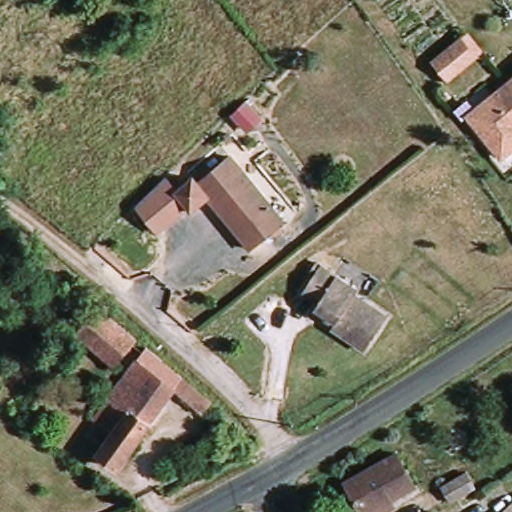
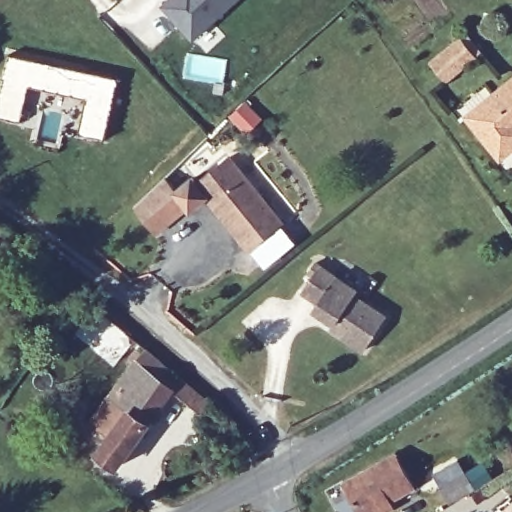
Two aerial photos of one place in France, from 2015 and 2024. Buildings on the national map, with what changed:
new [(163,7),(170,0),(238,0),(194,41),(163,7)]
unchanged [(436,59),(451,47),(464,37),(478,56),(464,67),(451,77),(436,59)]
new [(79,134),(87,96),(27,85),(21,120),(0,117),(0,95),(9,56),(117,79),(104,139),(79,134)]
unchanged [(512,78),(512,137),(485,99),(512,78)]
unchanged [(497,155),(467,113),(485,99),(512,137),(512,144),(497,155)]
unchanged [(191,208),(160,235),(135,206),(166,176),(177,190),(194,176),(197,181),(227,158),(230,163),(200,188),(207,197),(191,208)]
unchanged [(230,163),(280,224),(249,249),(207,197),(200,188),(230,163)]
unchanged [(318,311),(320,304),(305,295),(316,278),(310,275),(317,265),(322,268),(359,290),(356,297),(388,317),(368,350),(337,331),(337,328),(316,315),(318,311)]
unchanged [(119,364),(79,335),(100,309),(138,338),(119,364)]
unchanged [(105,445),(86,430),(136,363),(201,411),(194,422),(165,400),(109,479),(90,465),(105,445)]
unchanged [(384,504),(389,511),(387,512),(359,512),(344,487),(394,454),(412,485),(384,504)]
unchanged [(434,486),(459,470),(467,485),(443,500),(434,486)]
unchanged [(506,512),(511,508),(512,508),(512,512),(506,512)]

